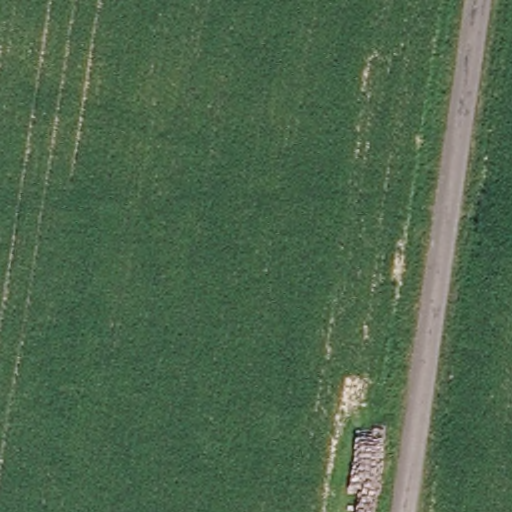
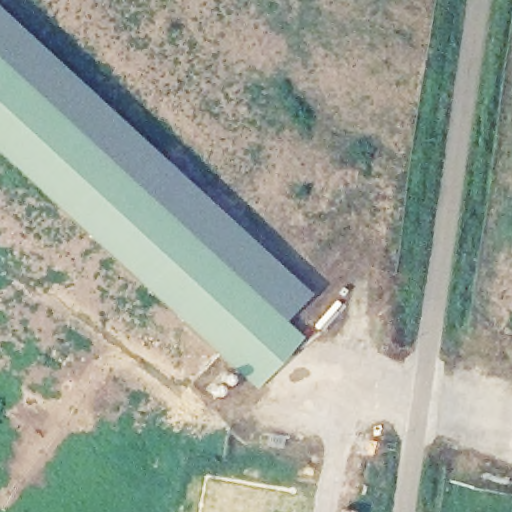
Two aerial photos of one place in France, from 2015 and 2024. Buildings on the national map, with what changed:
new [(311,294),(285,322),(0,61),(0,10),(311,294)]
new [(302,338),(255,388),(0,154),(0,61),(302,338)]

